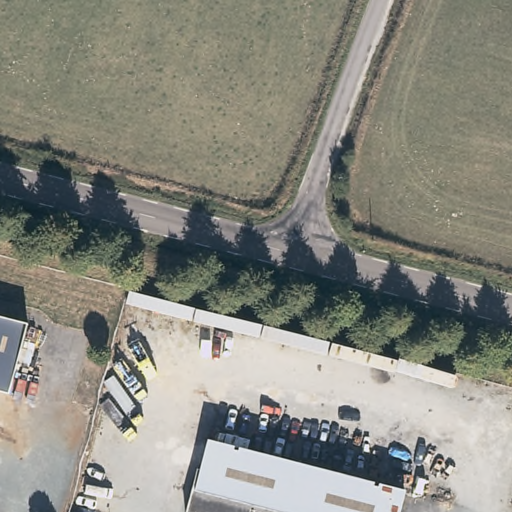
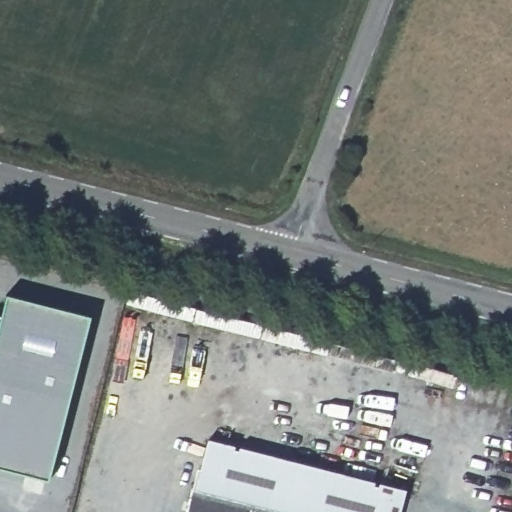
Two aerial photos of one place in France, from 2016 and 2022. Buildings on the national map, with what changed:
new [(11,393),(28,320),(2,313),(7,294),(90,316),(49,480),(0,468),(0,390),(11,393)]
unchanged [(28,320),(11,393),(0,390),(0,313),(28,320)]
unchanged [(394,512),(225,512),(191,503),(190,505),(184,503),(190,482),(193,482),(206,438),(400,490),(394,512)]

